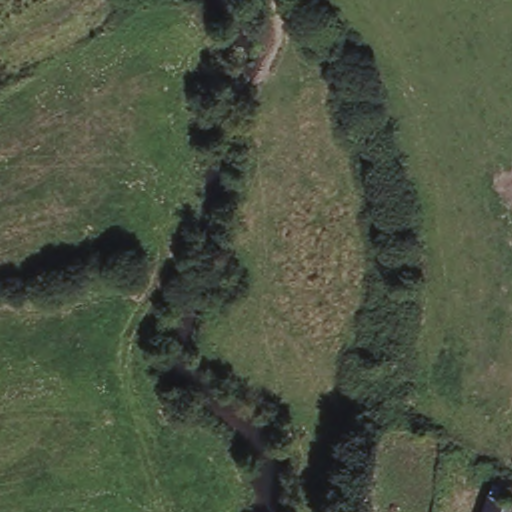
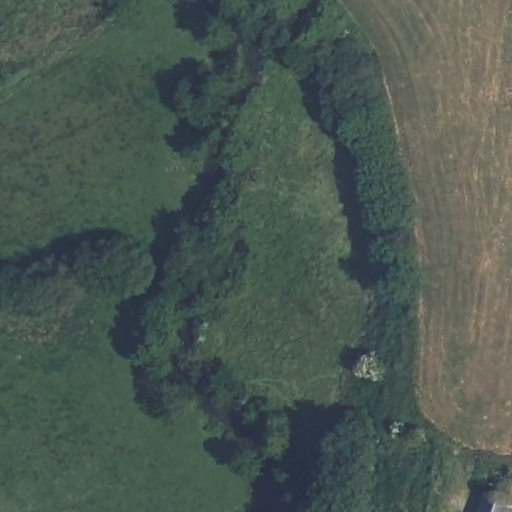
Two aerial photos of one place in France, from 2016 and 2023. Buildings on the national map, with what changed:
unchanged [(511,512),(482,512),(492,478),(512,484),(512,509),(511,512)]

